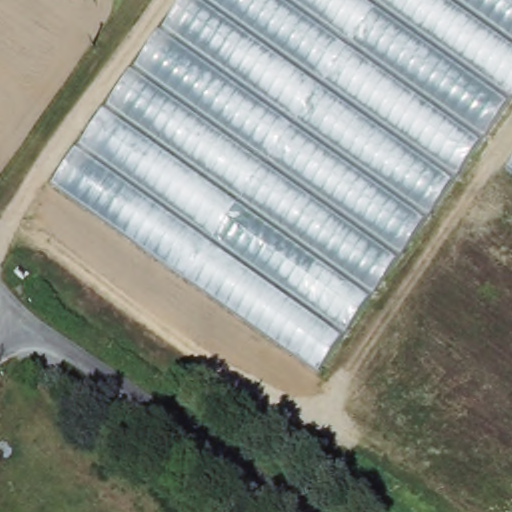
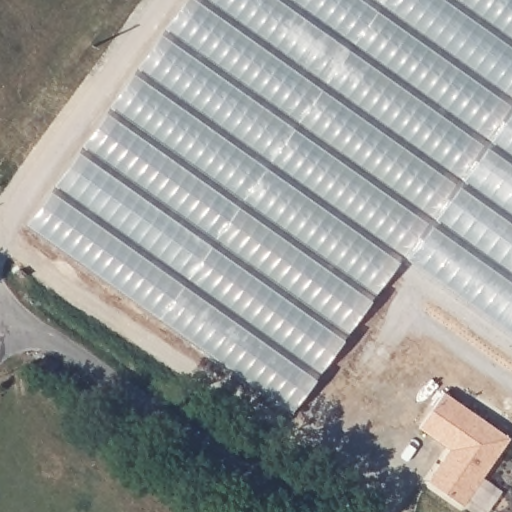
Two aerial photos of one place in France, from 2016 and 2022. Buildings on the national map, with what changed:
unchanged [(512,102),(321,372),(54,184),(184,0),(512,0),(512,102)]
new [(512,102),(512,334),(402,257),(512,102)]
demolished [(512,165),(512,169),(510,168),(512,165)]
new [(25,226),(54,184),(321,372),(293,413),(25,226)]
new [(510,437),(463,505),(427,481),(449,449),(418,428),(445,392),(510,437)]

